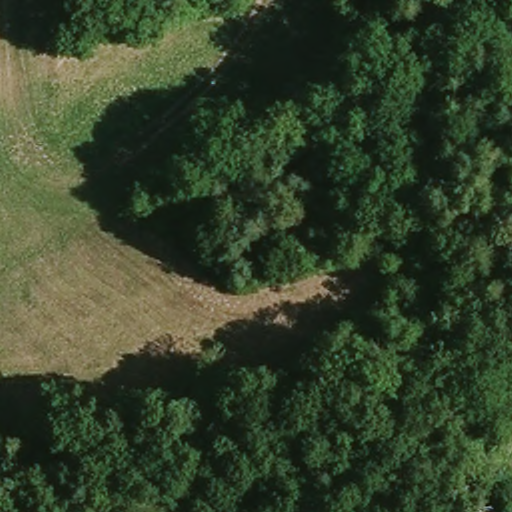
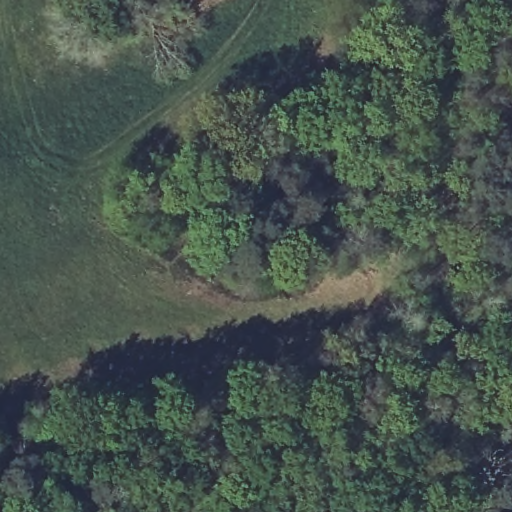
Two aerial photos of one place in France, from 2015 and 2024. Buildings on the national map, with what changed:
[]

